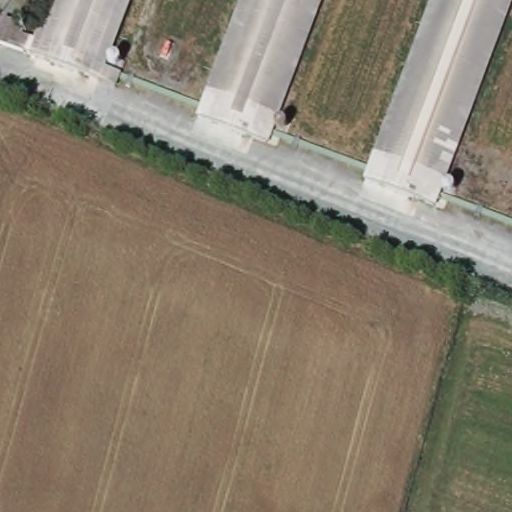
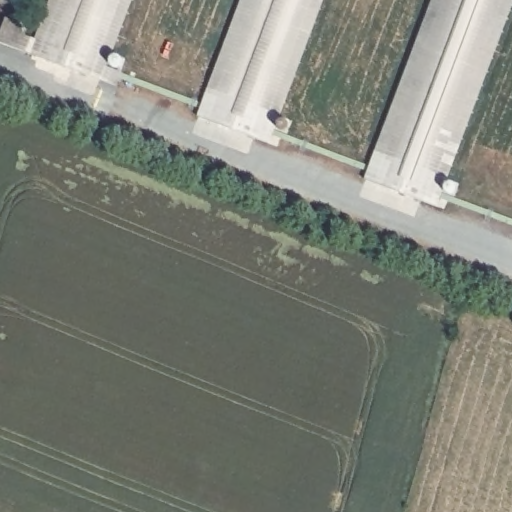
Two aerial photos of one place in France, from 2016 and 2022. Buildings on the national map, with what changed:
unchanged [(120,70),(114,86),(0,44),(0,28),(4,15),(25,23),(21,33),(35,38),(49,0),(130,0),(106,65),(120,70)]
unchanged [(192,118),(236,0),(318,0),(262,144),(192,118)]
unchanged [(431,0),(512,0),(512,1),(435,202),(364,176),(431,0)]

